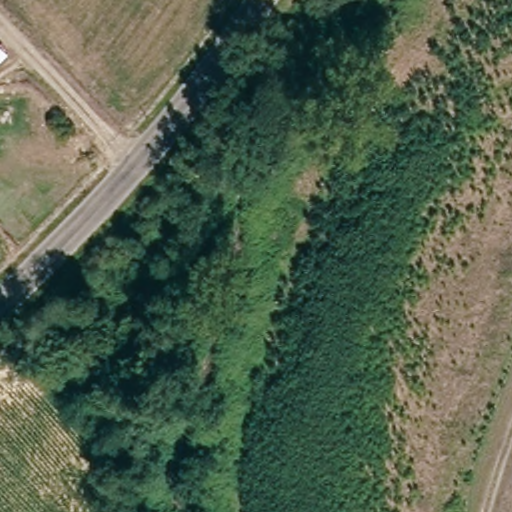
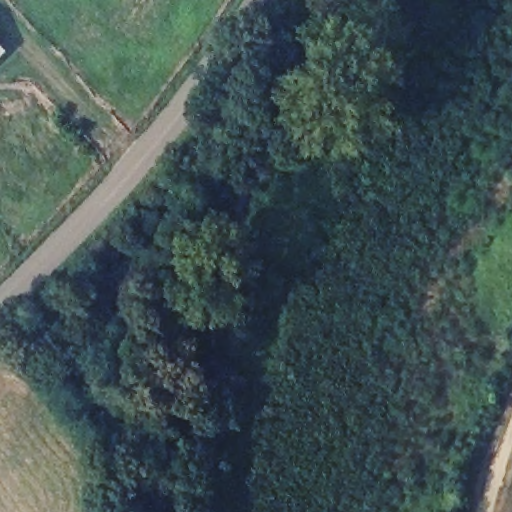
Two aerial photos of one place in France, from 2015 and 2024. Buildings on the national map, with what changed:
unchanged [(0,38),(9,47),(0,57),(0,38)]

